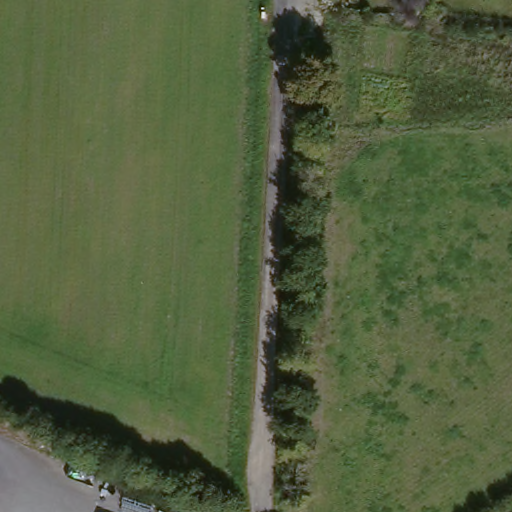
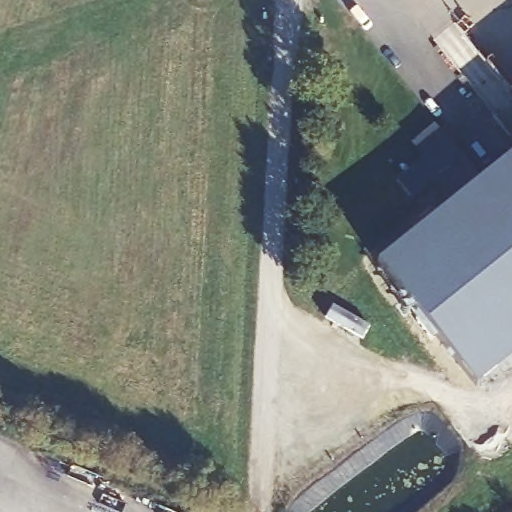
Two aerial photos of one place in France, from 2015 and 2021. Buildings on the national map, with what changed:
new [(512,156),(512,361),(478,388),(378,265),(512,156)]

